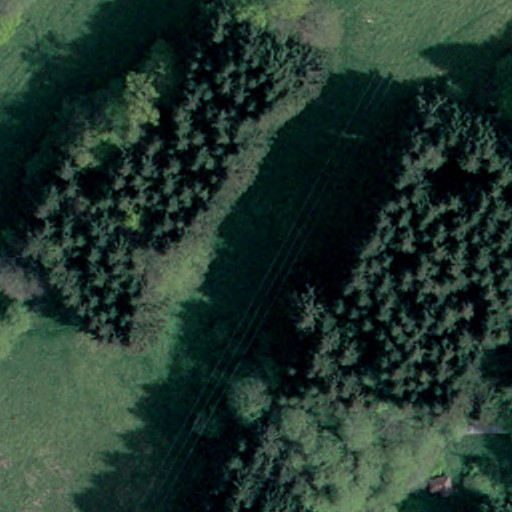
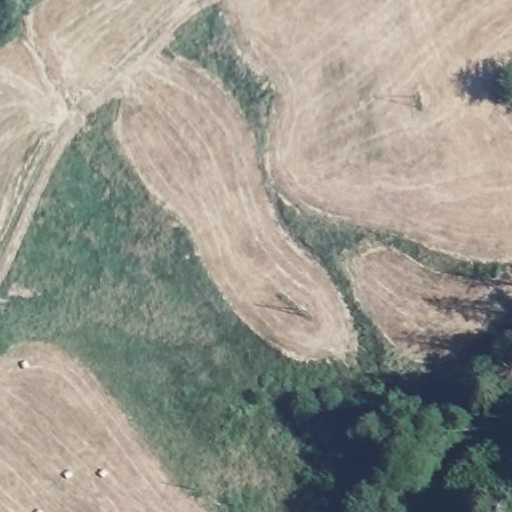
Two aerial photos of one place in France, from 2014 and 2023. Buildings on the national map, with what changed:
unchanged [(512,422),(482,413),(487,394),(512,401),(512,422)]
unchanged [(457,455),(452,470),(445,468),(447,462),(437,458),(440,449),(457,455)]

